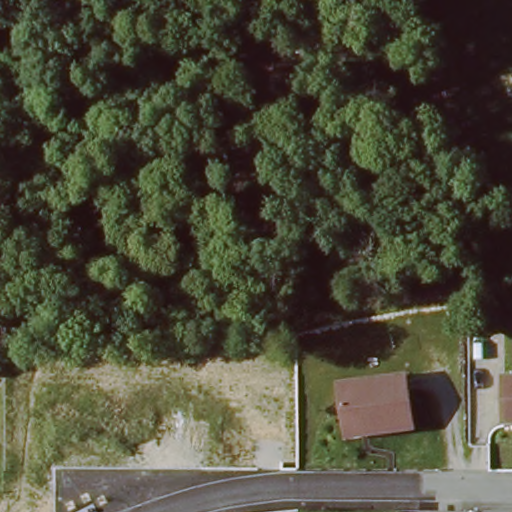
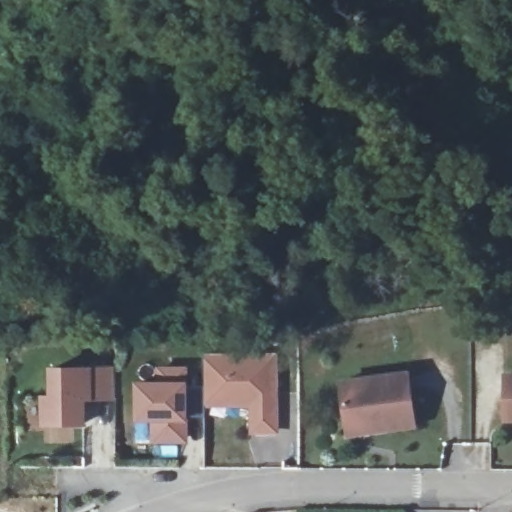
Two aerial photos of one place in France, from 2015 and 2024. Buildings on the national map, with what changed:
new [(275,355),(275,430),(252,430),(252,402),(204,402),(204,355),(275,355)]
new [(114,367),(114,397),(90,397),(90,404),(84,405),(84,422),(43,422),(43,395),(52,395),(52,366),(114,367)]
new [(205,417),(188,416),(188,424),(188,445),(151,444),(153,421),(135,421),(136,381),(157,381),(158,366),(188,367),(189,382),(189,388),(204,388),(204,402),(205,417)]
unchanged [(512,371),(512,415),(505,415),(505,371),(512,371)]
unchanged [(345,418),(345,375),(413,375),(413,429),(385,429),(345,428),(345,418)]

